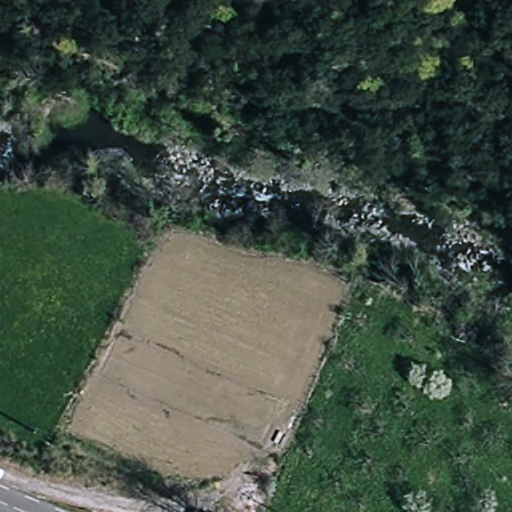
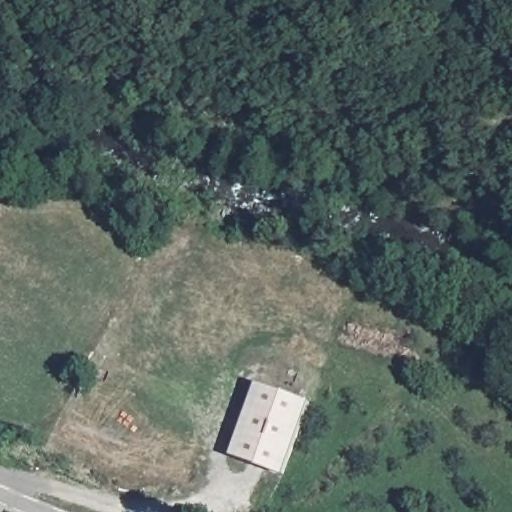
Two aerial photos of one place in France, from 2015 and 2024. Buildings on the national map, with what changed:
new [(281,475),(228,456),(254,383),(307,402),(281,475)]

